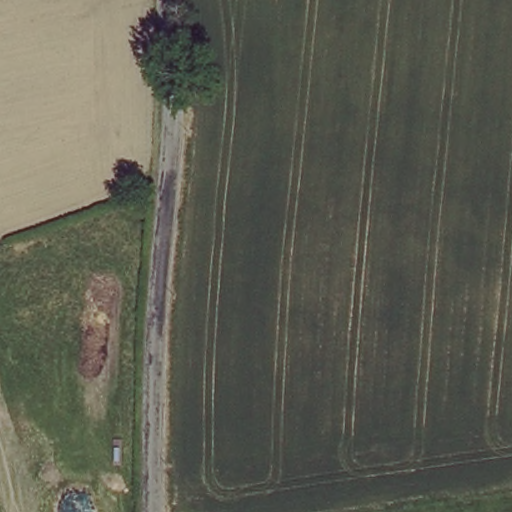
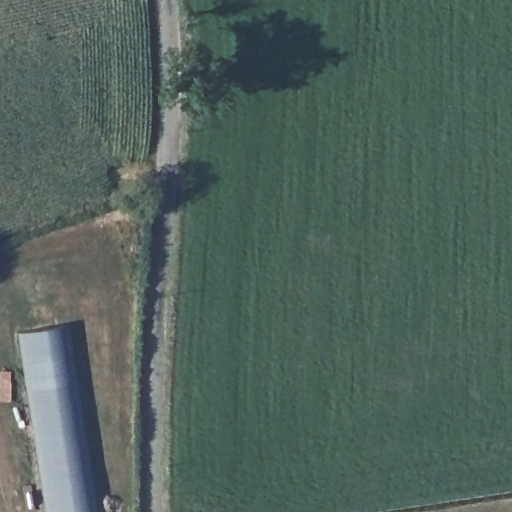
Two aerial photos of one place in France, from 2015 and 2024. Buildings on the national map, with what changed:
new [(22,331),(65,324),(93,512),(49,512),(22,331)]

